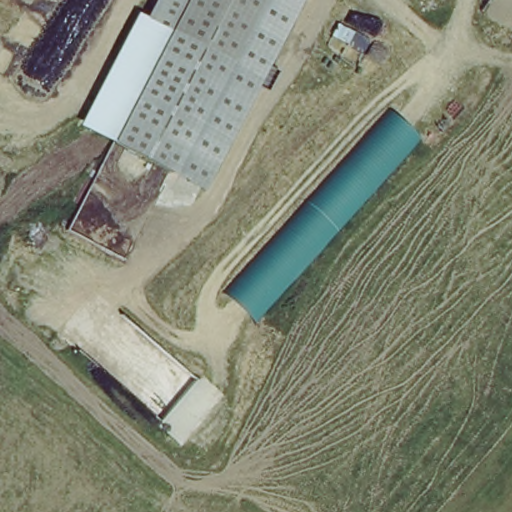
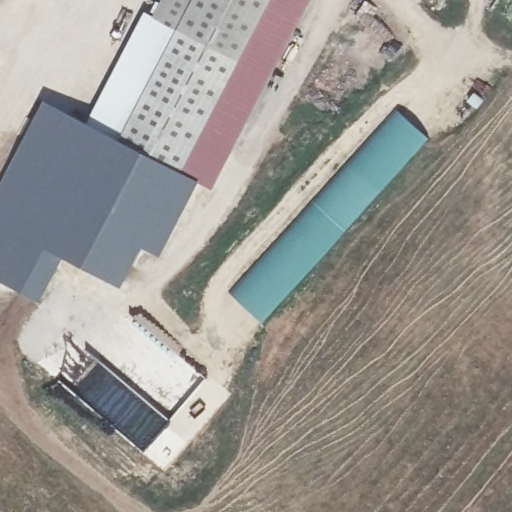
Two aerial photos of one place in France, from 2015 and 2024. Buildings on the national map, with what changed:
new [(119,286),(62,257),(38,300),(0,280),(0,184),(43,101),(85,122),(144,12),(152,17),(161,0),(194,0),(160,71),(125,142),(199,177),(159,256),(140,246),(119,286)]
unchanged [(309,0),(285,50),(218,187),(125,142),(160,71),(194,0),(309,0)]
unchanged [(259,323),(233,297),(398,114),(423,141),(259,323)]

